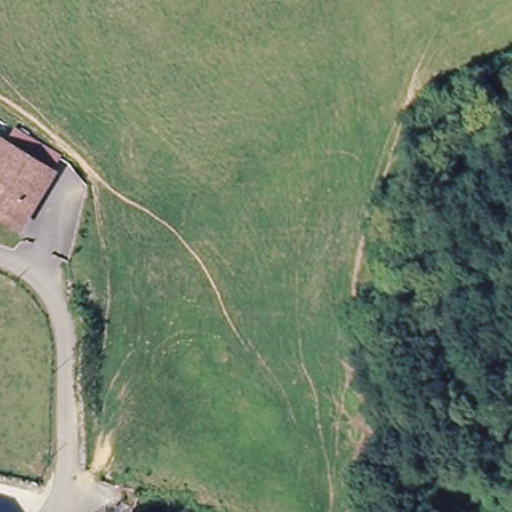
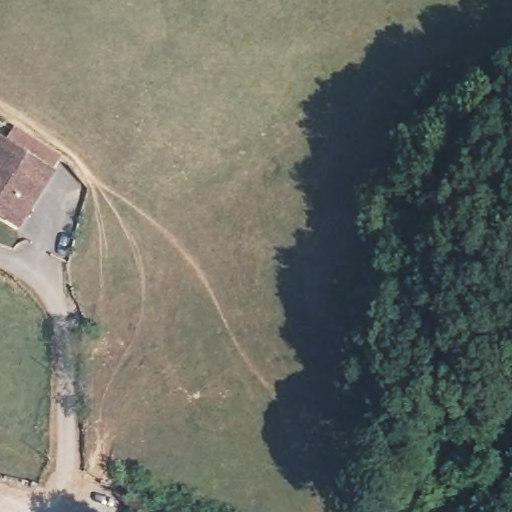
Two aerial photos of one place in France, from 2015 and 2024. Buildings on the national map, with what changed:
unchanged [(35,197),(20,223),(0,211),(0,140),(4,142),(26,155),(51,169),(35,197)]

